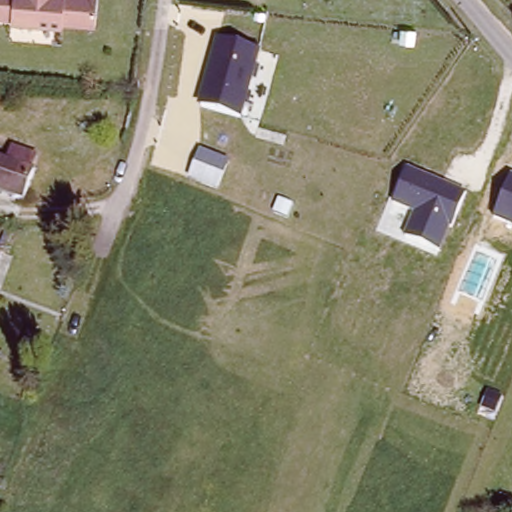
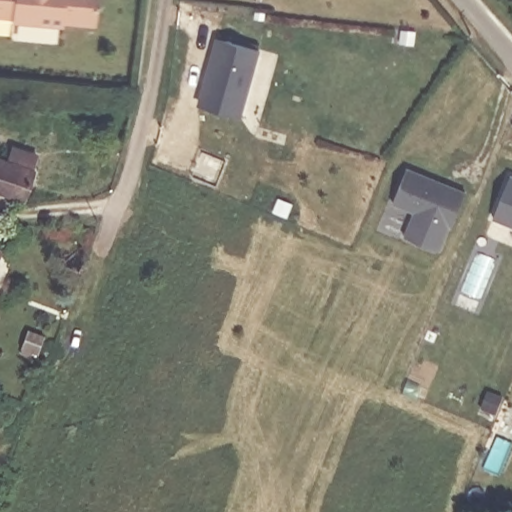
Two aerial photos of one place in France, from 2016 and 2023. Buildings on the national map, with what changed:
unchanged [(94,26),(62,23),(62,27),(11,22),(12,19),(0,18),(0,0),(96,0),(94,26)]
unchanged [(260,47),(241,117),(197,104),(215,36),(260,47)]
unchanged [(7,160),(12,145),(35,153),(30,167),(33,169),(21,202),(0,195),(0,157),(7,160)]
unchanged [(404,166),(464,190),(442,252),(404,237),(414,209),(389,200),(404,166)]
unchanged [(512,176),(512,223),(494,216),(512,176)]
unchanged [(2,247),(0,250),(0,246),(2,247)]

